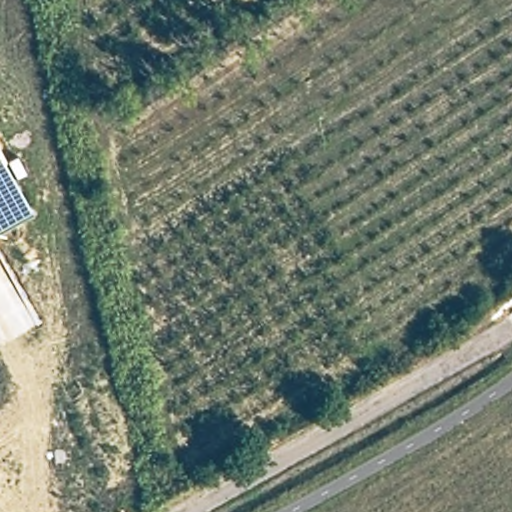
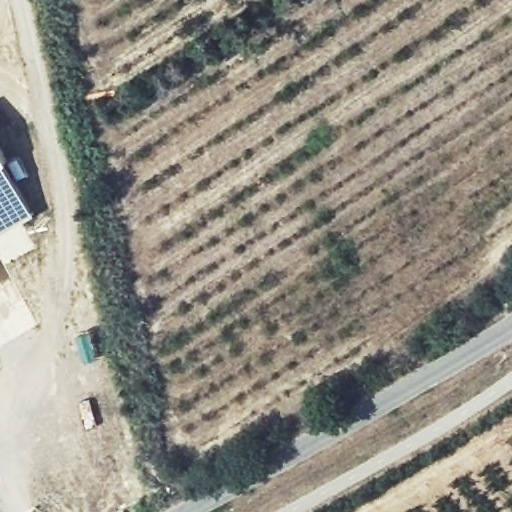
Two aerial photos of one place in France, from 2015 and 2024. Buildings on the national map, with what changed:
unchanged [(34,215),(0,234),(0,150),(34,215)]

